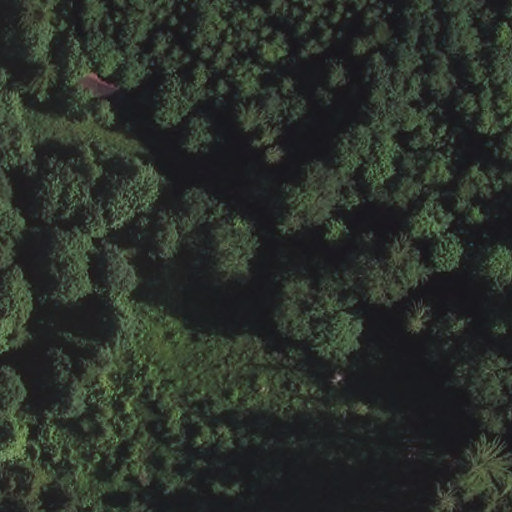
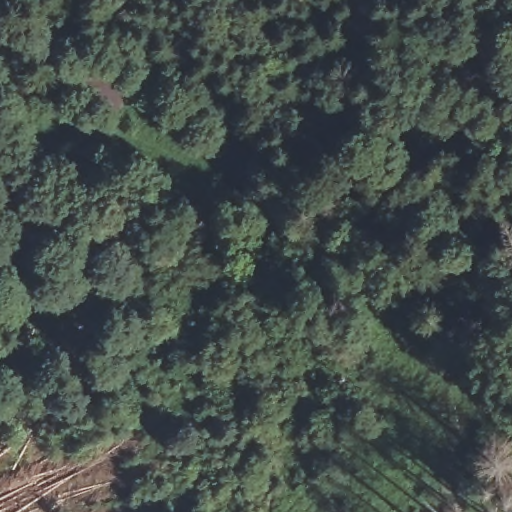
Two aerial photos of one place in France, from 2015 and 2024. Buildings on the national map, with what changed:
unchanged [(124,72),(105,110),(66,94),(84,54),(124,72)]

